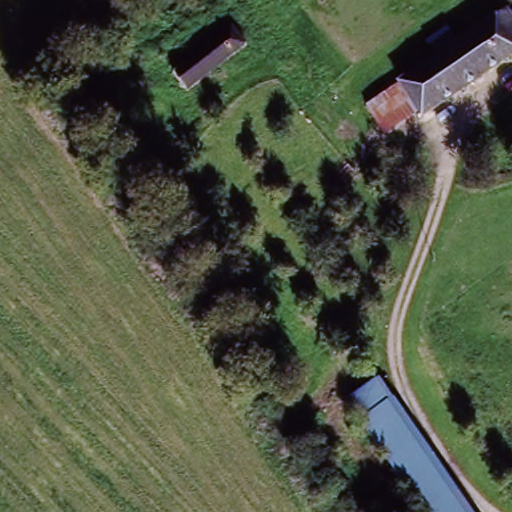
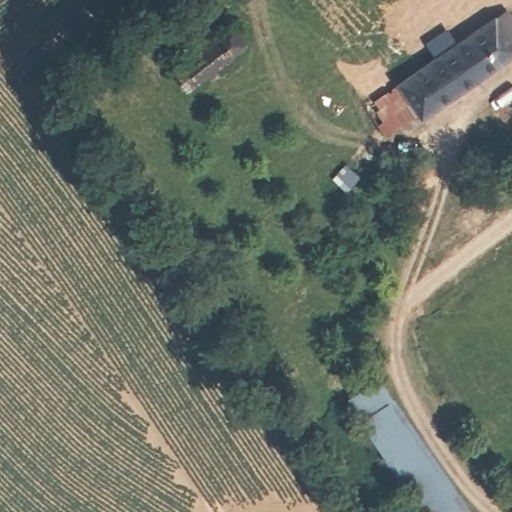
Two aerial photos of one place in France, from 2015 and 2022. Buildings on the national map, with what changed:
unchanged [(389,90),(488,13),(512,42),(512,44),(411,119),(389,135),(368,107),(389,90)]
unchanged [(225,25),(242,46),(185,91),(168,70),(225,25)]
unchanged [(460,512),(423,512),(342,400),(346,397),(364,385),(366,383),(460,512)]

